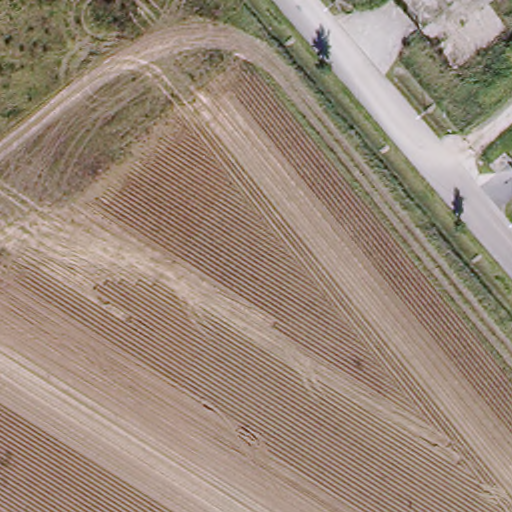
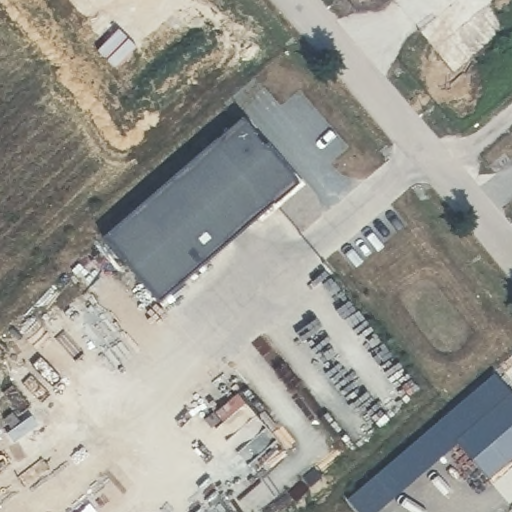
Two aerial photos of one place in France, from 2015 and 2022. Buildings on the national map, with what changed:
new [(299,183),(161,302),(105,236),(243,120),(299,183)]
new [(510,391),(512,393),(512,455),(485,478),(453,440),(453,439),(510,391)]

